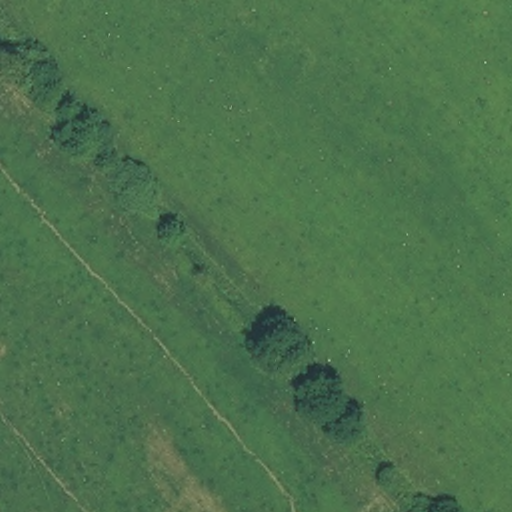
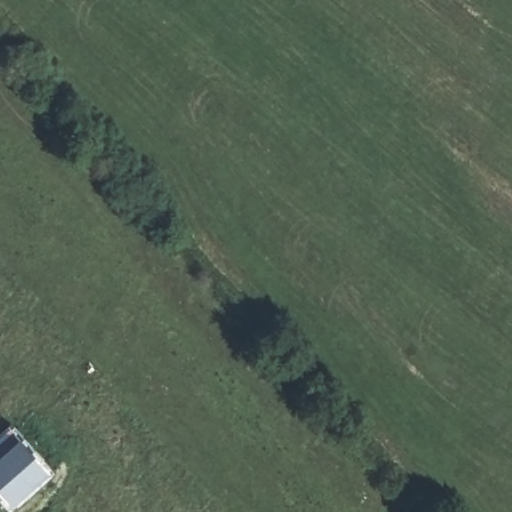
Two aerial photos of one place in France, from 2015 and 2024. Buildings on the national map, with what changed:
new [(51,478),(13,510),(0,495),(0,459),(22,442),(51,478)]

